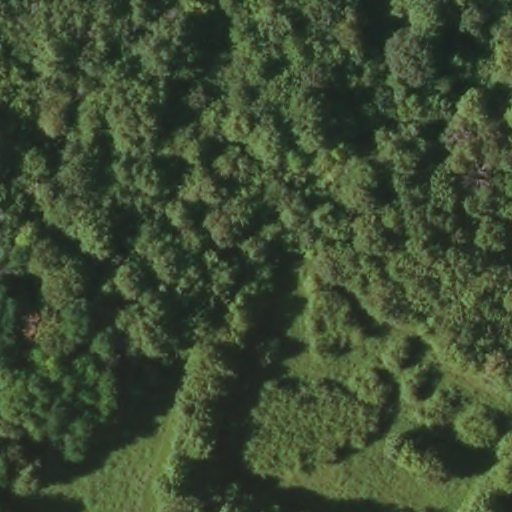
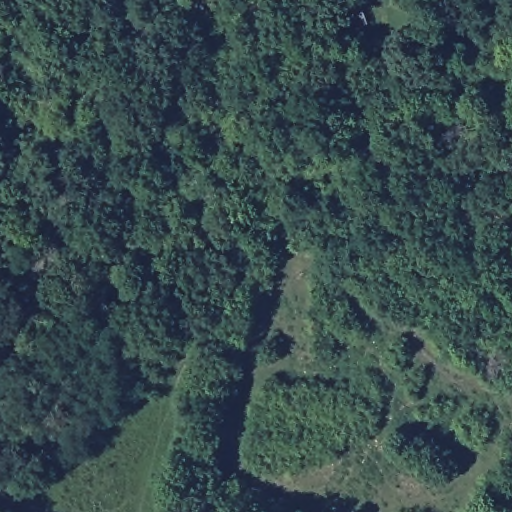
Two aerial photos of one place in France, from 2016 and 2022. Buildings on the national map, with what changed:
[]

